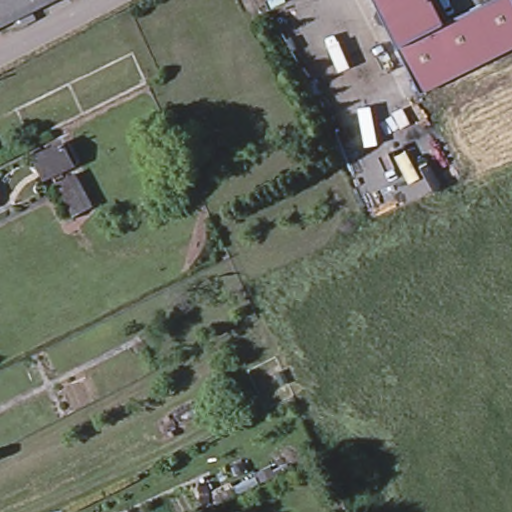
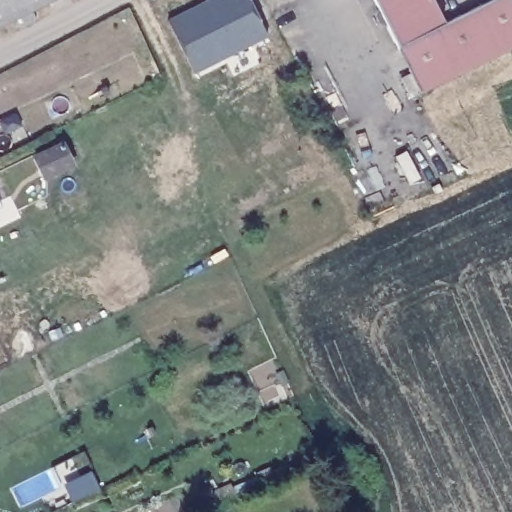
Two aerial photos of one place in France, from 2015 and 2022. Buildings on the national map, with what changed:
unchanged [(0,26),(0,0),(52,0),(40,6),(44,15),(15,29),(12,20),(0,26)]
new [(187,7),(189,12),(214,0),(249,0),(266,34),(193,70),(167,17),(187,7)]
unchanged [(379,18),(380,14),(373,0),(414,0),(379,18)]
unchanged [(400,53),(399,50),(391,35),(387,26),(382,25),(382,23),(379,18),(414,0),(431,0),(437,11),(445,26),(497,0),(512,0),(512,38),(417,85),(400,53)]
unchanged [(422,95),(417,85),(512,38),(512,49),(422,95)]
unchanged [(63,140),(72,164),(94,209),(70,220),(55,180),(40,186),(31,155),(63,140)]
new [(90,477),(96,489),(72,499),(67,489),(90,477)]

